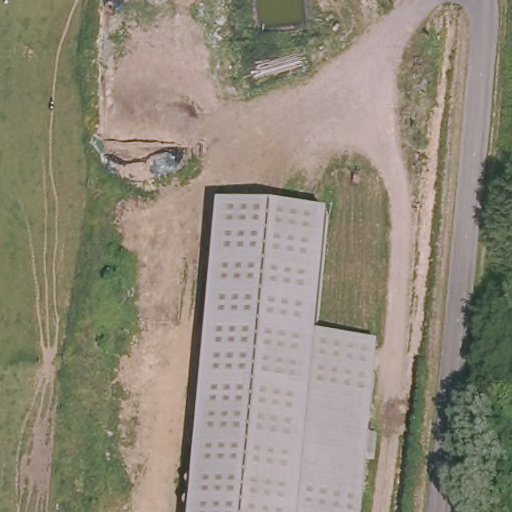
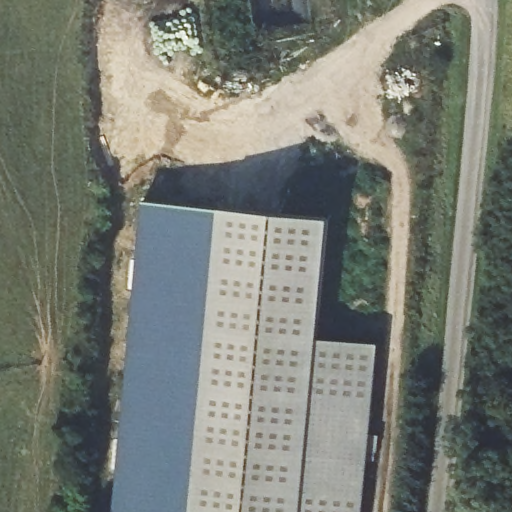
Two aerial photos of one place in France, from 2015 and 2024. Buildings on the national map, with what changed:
new [(220,208),(192,512),(112,512),(142,201),(220,208)]
unchanged [(318,335),(376,341),(360,512),(192,512),(220,208),(329,219),(318,335)]

